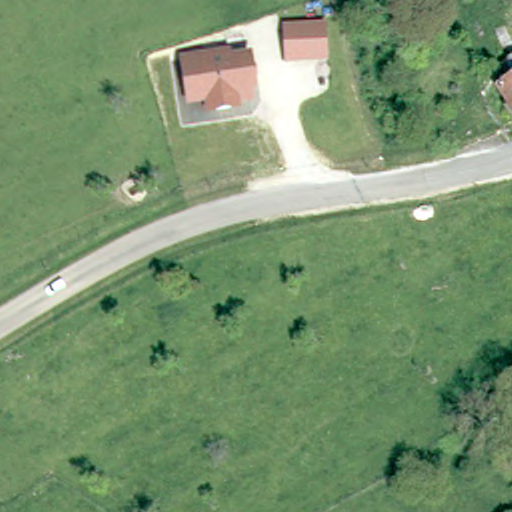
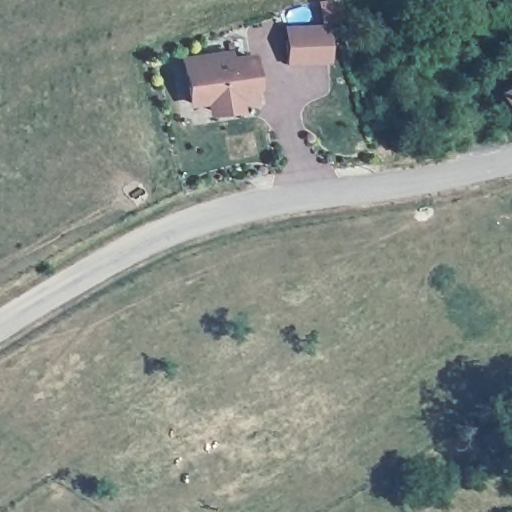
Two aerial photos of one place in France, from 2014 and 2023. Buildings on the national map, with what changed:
unchanged [(326,23),(329,63),(284,66),(284,26),(326,23)]
unchanged [(231,51),(231,56),(252,52),(259,100),(242,104),(243,107),(206,113),(203,104),(185,107),(178,59),(231,51)]
unchanged [(512,82),(512,112),(499,92),(512,82)]

